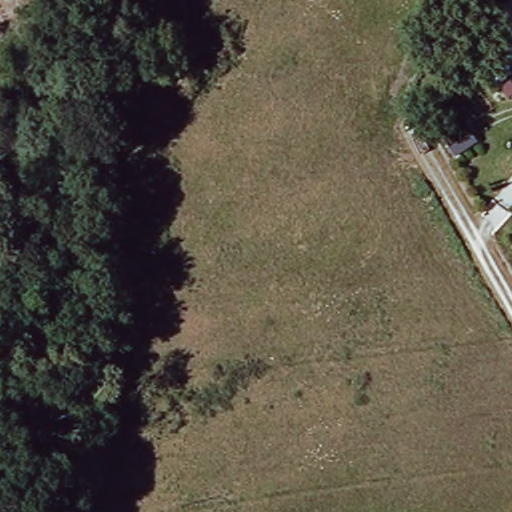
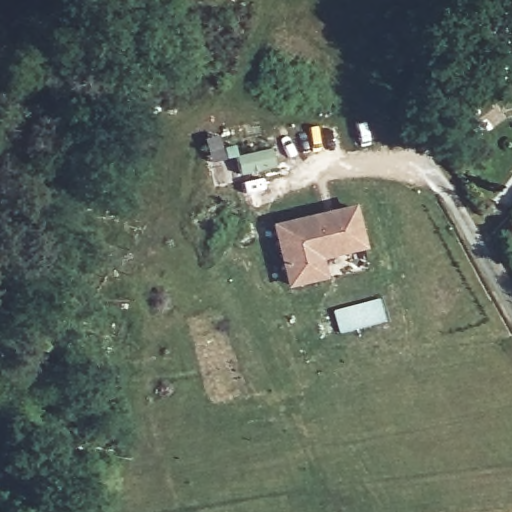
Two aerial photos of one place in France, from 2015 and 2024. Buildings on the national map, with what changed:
unchanged [(473,111),(483,128),(461,141),(451,124),(473,111)]
new [(319,259),(324,277),(286,287),(270,224),(352,204),(364,249),(319,259)]

